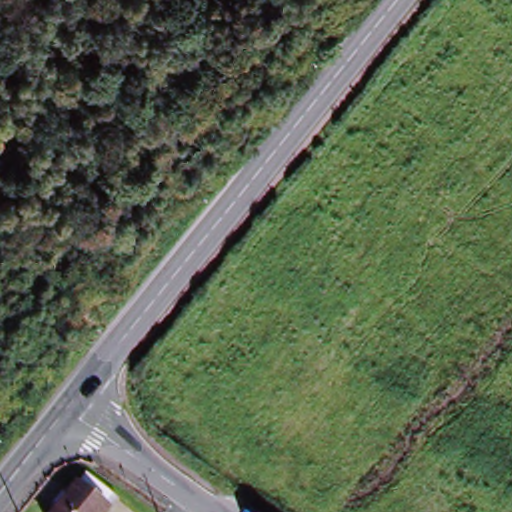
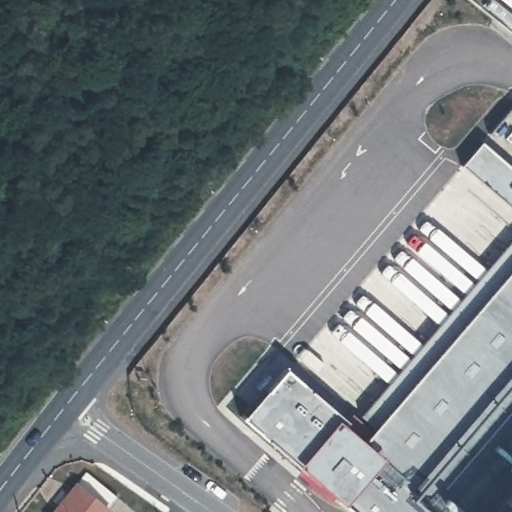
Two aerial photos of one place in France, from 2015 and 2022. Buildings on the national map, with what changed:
new [(465,165),(483,143),(512,166),(512,201),(465,165)]
new [(512,270),(512,512),(432,512),(361,452),(512,270)]
new [(317,495),(320,491),(301,474),(298,479),(237,427),(278,380),(432,512),(337,512),(317,495)]
unchanged [(81,474),(115,504),(109,512),(52,512),(81,474)]

